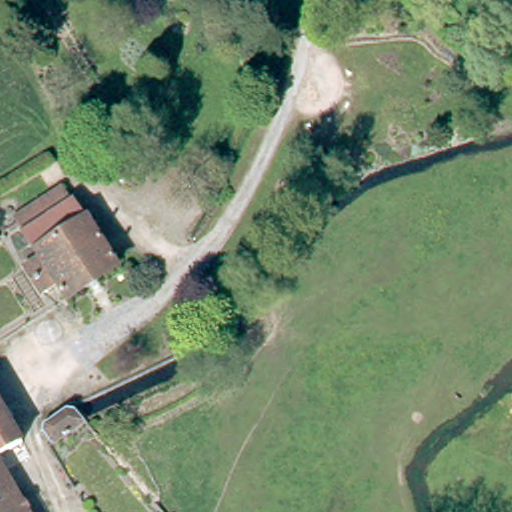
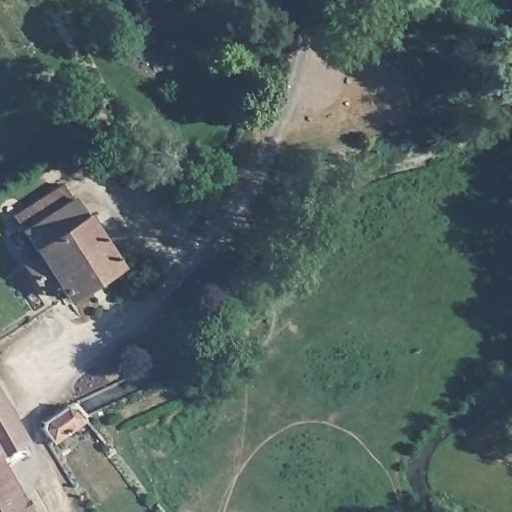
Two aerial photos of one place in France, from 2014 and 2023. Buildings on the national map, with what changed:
unchanged [(15,224),(12,220),(63,184),(72,199),(21,233),(15,224)]
unchanged [(57,283),(43,292),(22,262),(35,254),(21,233),(72,199),(118,265),(67,299),(57,283)]
unchanged [(11,461),(3,465),(0,468),(0,396),(31,449),(11,461)]
unchanged [(42,429),(43,422),(67,407),(75,408),(85,419),(79,423),(52,442),(42,429)]
unchanged [(0,468),(3,465),(31,512),(0,512),(0,468)]

